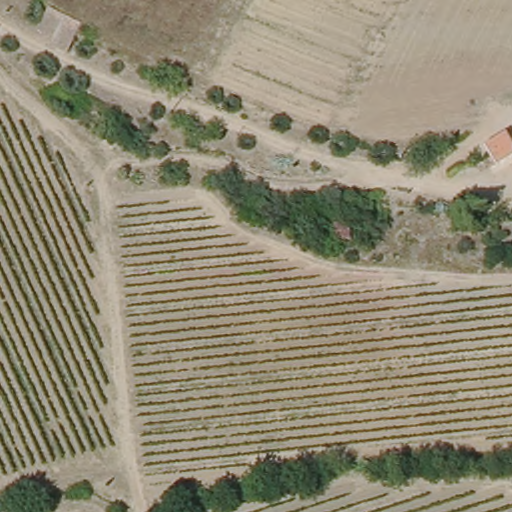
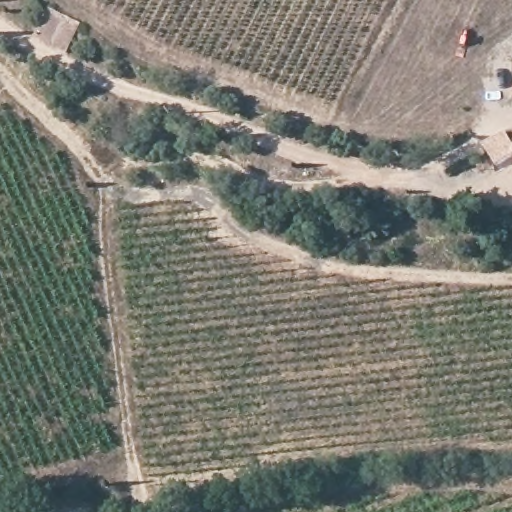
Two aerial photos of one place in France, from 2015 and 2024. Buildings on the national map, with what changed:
unchanged [(24,30),(39,1),(75,18),(72,26),(60,53),(23,34),(24,30)]
unchanged [(504,129),(509,140),(512,138),(512,153),(492,162),(486,147),(482,139),(504,129)]
unchanged [(506,192),(502,182),(512,177),(512,190),(506,192)]
unchanged [(354,220),(354,242),(329,243),(328,221),(354,220)]

